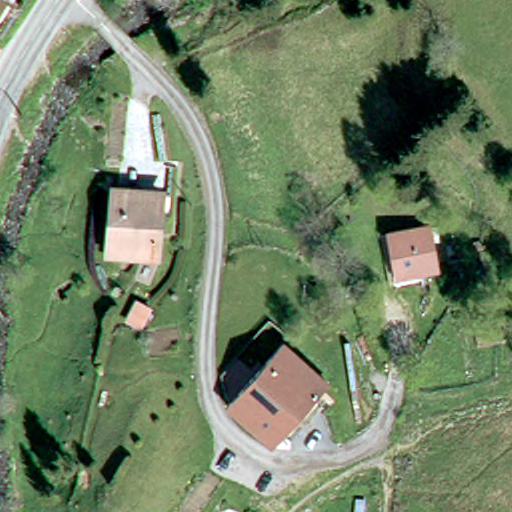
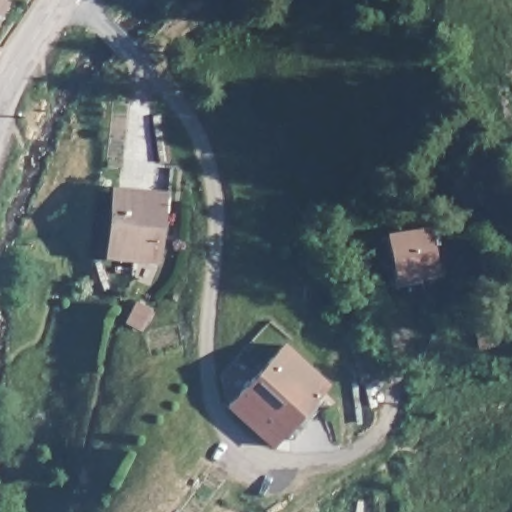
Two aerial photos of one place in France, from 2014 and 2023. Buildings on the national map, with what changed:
unchanged [(10,15),(0,29),(0,8),(10,15)]
unchanged [(174,200),(172,221),(158,220),(155,267),(107,261),(114,195),(162,199),(174,200)]
unchanged [(432,232),(435,282),(402,283),(399,234),(432,232)]
unchanged [(288,437),(274,451),(232,412),(232,410),(289,355),(329,391),(292,432),(288,437)]
unchanged [(347,435),(350,445),(335,450),(332,438),(347,435)]

